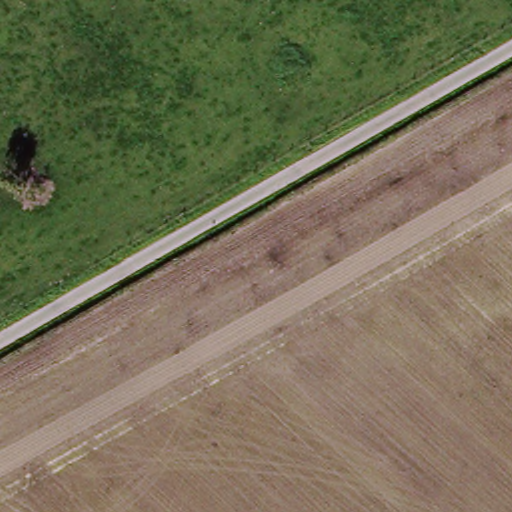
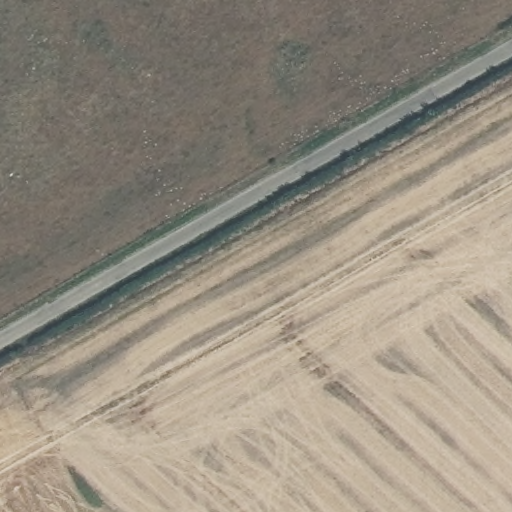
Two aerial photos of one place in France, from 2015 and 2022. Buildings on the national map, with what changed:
[]

